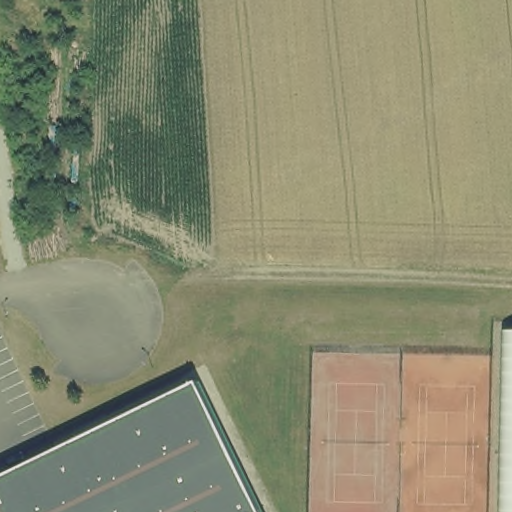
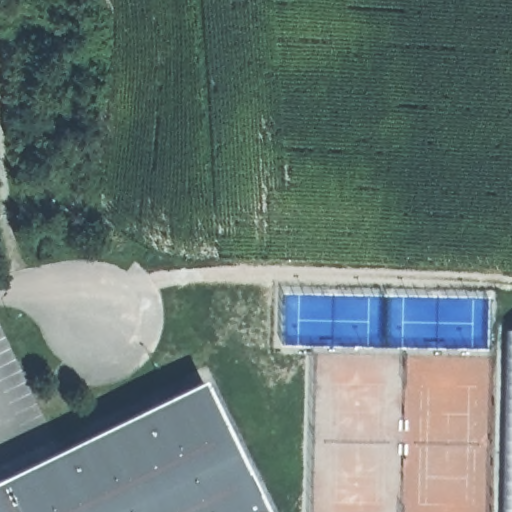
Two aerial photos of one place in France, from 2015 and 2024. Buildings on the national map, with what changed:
unchanged [(512,326),(512,512),(501,512),(503,326),(512,326)]
unchanged [(11,472),(28,464),(70,443),(197,381),(262,512),(0,512),(0,478),(11,472)]

